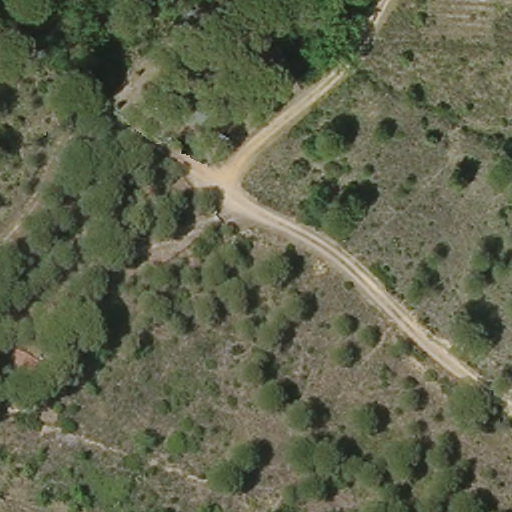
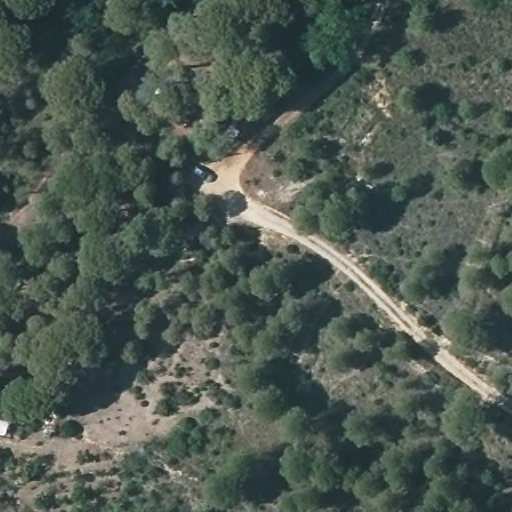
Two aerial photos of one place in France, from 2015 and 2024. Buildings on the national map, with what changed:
unchanged [(235,107),(207,136),(183,113),(210,84),(235,107)]
unchanged [(46,359),(34,379),(12,366),(24,347),(46,359)]

